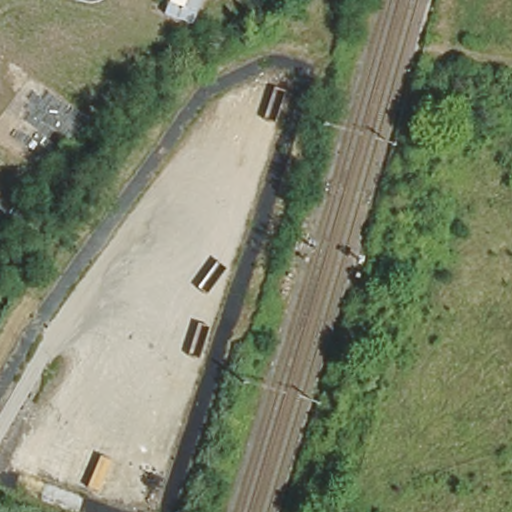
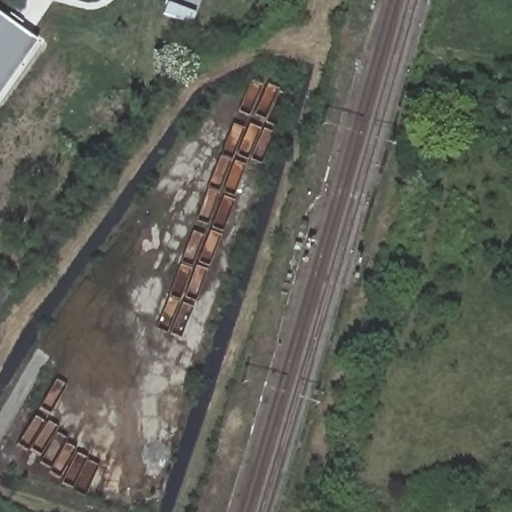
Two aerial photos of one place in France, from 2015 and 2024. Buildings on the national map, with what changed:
new [(0,92),(0,19),(34,43),(0,92)]

